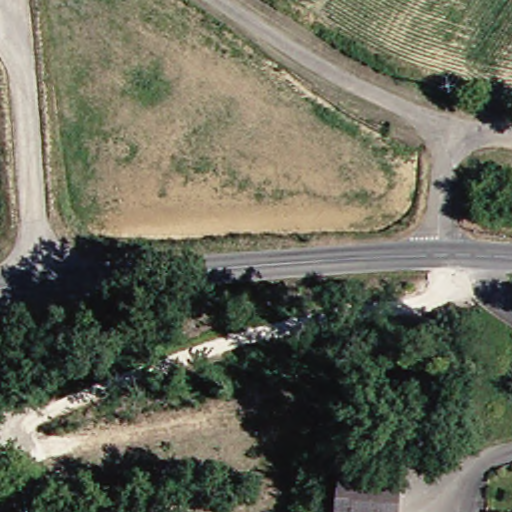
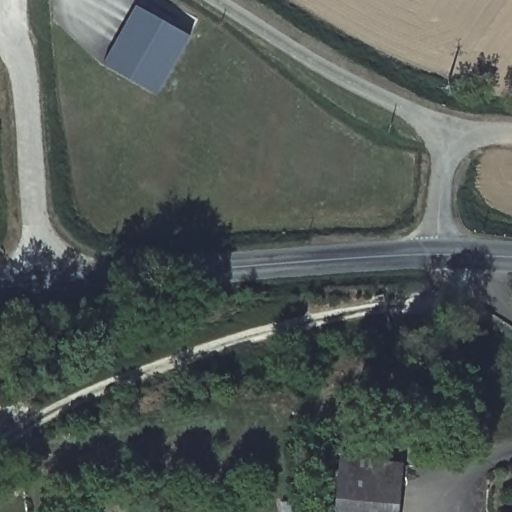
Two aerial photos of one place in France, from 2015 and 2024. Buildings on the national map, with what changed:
new [(190,34),(156,94),(101,64),(135,4),(190,34)]
unchanged [(346,473),(404,477),(402,512),(344,512),(346,473)]

